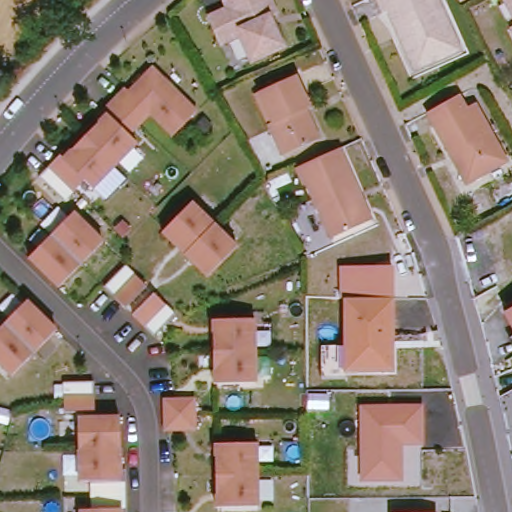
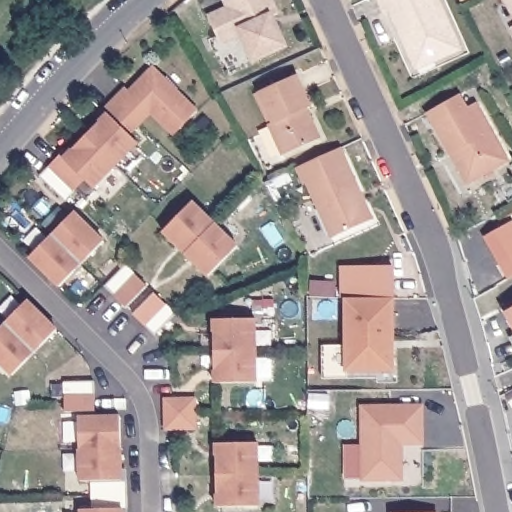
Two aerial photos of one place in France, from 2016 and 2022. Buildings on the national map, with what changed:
unchanged [(242,0),(275,0),(284,19),(275,24),(278,31),(282,32),(290,52),(262,64),(255,62),(246,44),(227,52),(214,24),(233,15),(229,7),(242,0)]
unchanged [(391,11),(386,14),(378,0),(439,0),(462,51),(436,63),(419,71),(415,63),(391,11)]
demolished [(507,4),(505,0),(512,0),(512,8),(509,3),(507,4)]
unchanged [(152,115),(131,137),(139,145),(96,190),(87,181),(66,203),(40,178),(61,156),(66,161),(108,117),(104,113),(126,90),(130,94),(152,70),(197,113),(175,137),(152,115)]
unchanged [(268,128),(273,125),(260,95),(296,79),(309,110),(305,113),(319,142),(283,159),(268,128)]
unchanged [(446,127),(438,114),(469,96),(477,111),(486,107),(512,154),(512,166),(483,182),(476,185),(460,158),(444,128),(446,127)]
unchanged [(344,150),(364,195),(362,197),(365,203),(370,207),(377,223),(339,240),(313,185),(309,187),(302,169),(344,150)]
unchanged [(193,202),(240,248),(210,278),(164,232),(193,202)]
unchanged [(30,259),(75,214),(105,243),(60,288),(30,259)]
new [(511,221),(512,222),(512,277),(509,280),(499,263),(484,236),(511,221)]
unchanged [(126,267),(148,287),(127,309),(106,288),(126,267)]
unchanged [(341,298),(341,267),(394,268),(394,298),(348,298),(343,298),(341,298)]
unchanged [(155,294),(177,315),(157,337),(135,316),(155,294)]
unchanged [(394,298),(394,372),(347,371),(347,378),(321,377),(320,342),(343,342),(343,298),(394,298)]
unchanged [(28,302),(58,332),(13,377),(0,364),(0,330),(28,302)]
unchanged [(512,310),(512,323),(507,314),(512,310)]
unchanged [(257,320),(259,384),(217,384),(215,320),(257,320)]
unchanged [(96,382),(97,412),(67,413),(66,383),(96,382)]
unchanged [(197,400),(198,430),(168,430),(168,400),(197,400)]
unchanged [(426,403),(427,440),(401,440),(401,448),(405,448),(405,476),(367,476),(366,403),(426,403)]
unchanged [(95,509),(95,481),(83,481),(81,418),(122,417),(124,480),(129,480),(130,510),(125,510),(125,512),(84,512),(84,509),(95,509)]
unchanged [(260,443),(262,507),(219,508),(218,444),(260,443)]
unchanged [(438,509),(438,512),(395,512),(395,510),(438,509)]

